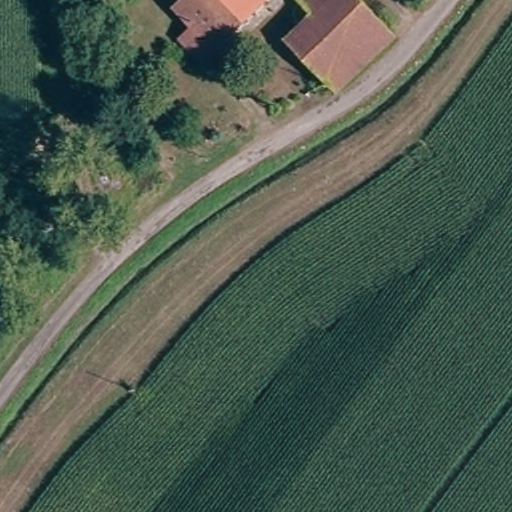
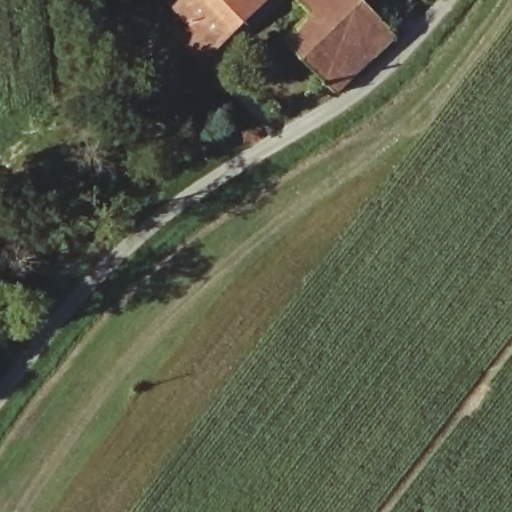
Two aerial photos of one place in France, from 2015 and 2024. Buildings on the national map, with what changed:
unchanged [(196,27),(179,9),(188,0),(269,0),(217,50),(192,72),(172,50),(196,27)]
unchanged [(333,88),(290,37),(322,9),(314,0),(365,0),(388,28),(395,35),(333,88)]

